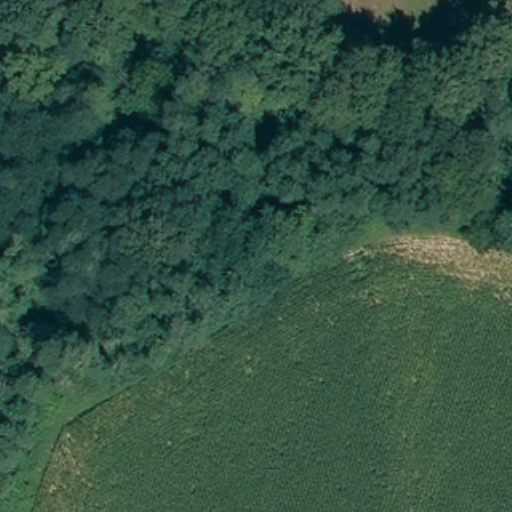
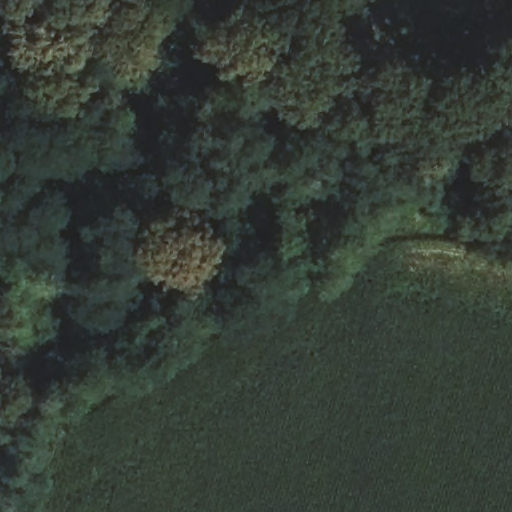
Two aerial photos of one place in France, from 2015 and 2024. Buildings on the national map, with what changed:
[]

